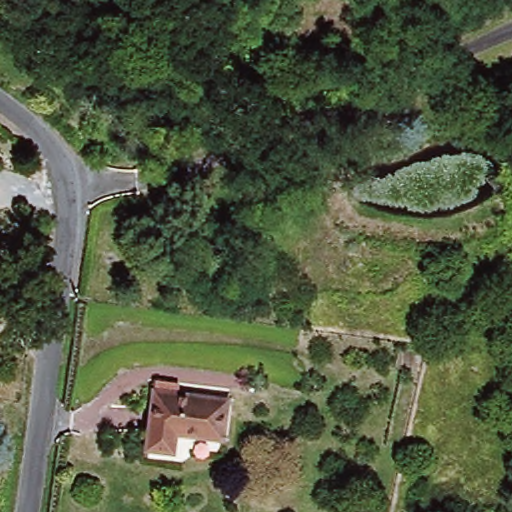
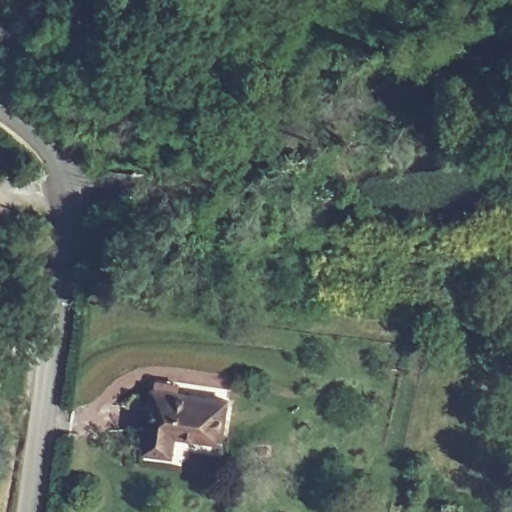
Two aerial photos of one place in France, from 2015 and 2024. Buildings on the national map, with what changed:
unchanged [(219,438),(175,430),(171,449),(144,445),(155,385),(157,374),(179,378),(177,389),(226,398),(219,438)]

